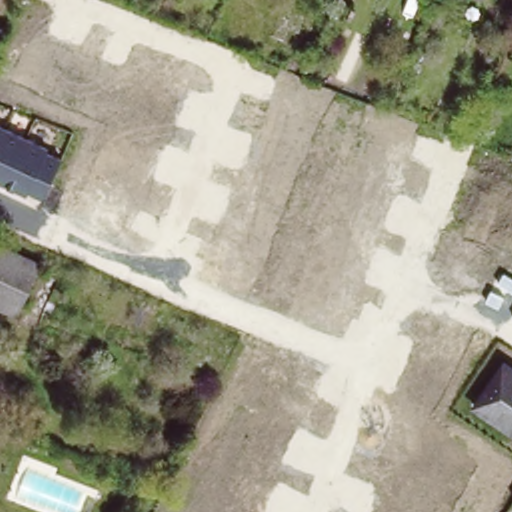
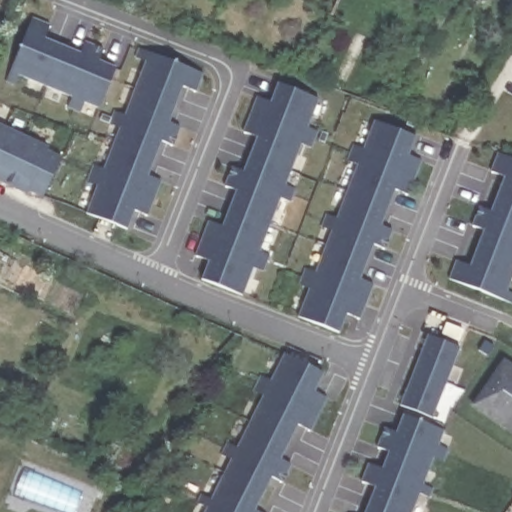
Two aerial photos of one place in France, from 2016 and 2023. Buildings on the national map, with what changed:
new [(31,18),(50,25),(45,38),(80,51),(85,41),(94,44),(98,61),(116,69),(100,109),(83,103),(80,113),(66,108),(70,98),(18,76),(15,85),(5,82),(31,18)]
new [(96,186),(85,182),(91,165),(103,169),(108,157),(95,151),(99,141),(112,146),(120,128),(108,125),(112,111),(125,116),(145,62),(133,58),(137,49),(200,73),(192,91),(181,88),(168,123),(178,126),(171,146),(160,141),(147,177),(158,181),(145,216),(132,211),(126,230),(85,214),(96,186)]
new [(208,261),(193,256),(208,221),(223,227),(236,191),(223,186),(230,167),(245,172),(257,139),(242,133),(255,97),(270,103),(277,84),(317,99),(305,127),(316,130),(310,148),(299,144),(282,187),(292,190),(287,202),(277,199),(256,253),(267,257),(261,272),(250,268),(240,296),(200,280),(208,261)]
new [(308,290),(297,286),(304,268),(315,272),(330,232),(320,227),(324,214),(335,219),(356,166),(346,162),(351,146),(362,150),(374,121),(415,136),(407,156),(418,160),(406,194),(393,190),(380,225),(391,229),(384,249),(373,245),(360,280),(371,283),(357,318),(345,315),(338,333),(295,317),(308,290)]
unchanged [(50,149),(49,154),(62,159),(44,202),(0,182),(0,126),(50,149)]
new [(470,267),(484,231),(470,226),(478,206),(491,211),(504,177),(488,171),(496,152),(512,158),(512,275),(505,292),(512,294),(512,303),(511,306),(447,280),(454,261),(470,267)]
unchanged [(45,267),(22,318),(0,307),(0,246),(45,267)]
new [(427,334),(458,348),(430,419),(397,406),(427,334)]
unchanged [(503,352),(512,358),(512,432),(470,405),(503,352)]
new [(206,507),(196,502),(200,494),(210,499),(230,461),(220,456),(225,444),(236,449),(262,396),(251,393),(260,377),(270,382),(283,354),(322,373),(313,392),(325,397),(309,431),(296,427),(280,460),(290,464),(282,483),(270,478),(253,510),(258,512),(204,512),(206,507)]
new [(375,487),(360,482),(366,465),(382,470),(388,452),(374,448),(382,428),(396,433),(402,415),(442,429),(436,447),(445,449),(441,462),(430,459),(421,486),(432,489),(429,498),(417,494),(410,512),(365,512),(375,487)]

